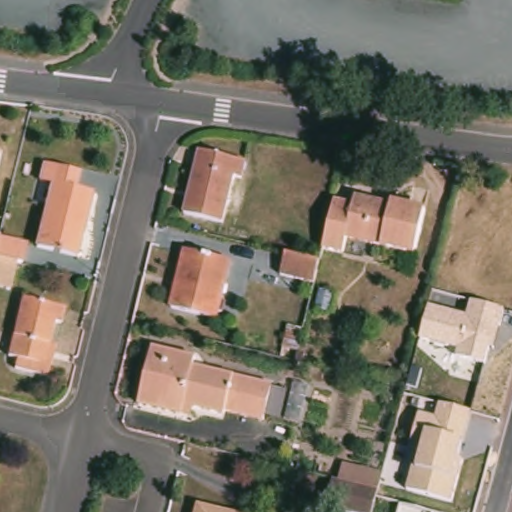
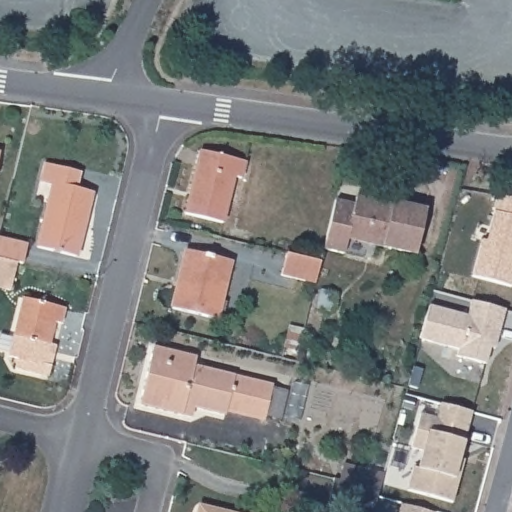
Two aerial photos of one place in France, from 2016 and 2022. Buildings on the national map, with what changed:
unchanged [(196,151),(241,161),(237,179),(229,177),(218,223),(181,215),(196,151)]
unchanged [(48,184),(37,182),(41,164),(76,171),(72,188),(87,191),(72,256),(32,248),(48,184)]
unchanged [(383,203),(382,208),(391,210),(392,202),(426,209),(416,255),(348,239),(345,254),(325,249),(333,212),(337,201),(355,204),(356,197),(383,203)]
new [(480,240),(486,241),(497,197),(512,199),(512,288),(471,278),(480,240)]
unchanged [(0,288),(0,238),(3,239),(30,246),(26,266),(22,265),(15,292),(0,288)]
unchanged [(289,250),(322,257),(316,278),(282,269),(287,249),(289,250)]
unchanged [(171,286),(174,287),(179,268),(176,267),(180,250),(225,261),(211,320),(167,309),(171,286)]
unchanged [(52,366),(48,378),(15,370),(17,359),(8,357),(22,299),(65,309),(62,324),(55,323),(49,346),(56,348),(52,366)]
unchanged [(430,307),(467,317),(472,301),(505,310),(495,351),(489,350),(485,366),(457,358),(459,349),(421,340),(430,307)]
unchanged [(182,413),(140,403),(153,348),(197,358),(194,367),(273,386),(272,390),(286,393),(280,418),(266,415),(265,419),(227,411),(227,414),(195,407),(192,416),(182,413)]
unchanged [(416,456),(410,454),(420,414),(436,419),(441,406),(471,413),(463,443),(459,459),(465,461),(452,504),(407,492),(416,456)]
unchanged [(333,481),(337,466),(378,477),(377,483),(375,491),(369,512),(337,512),(321,508),(328,479),(333,481)]
unchanged [(430,512),(399,512),(401,505),(430,512)]

